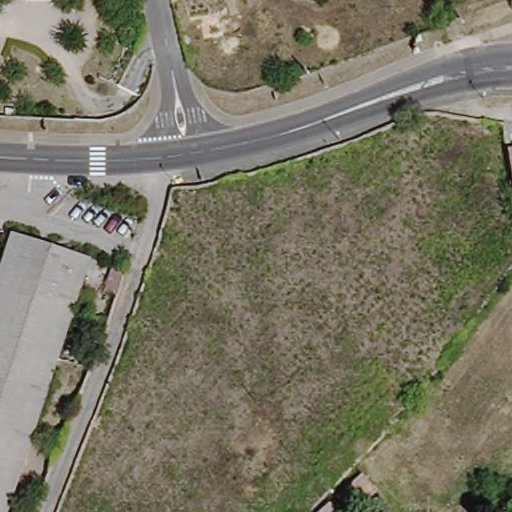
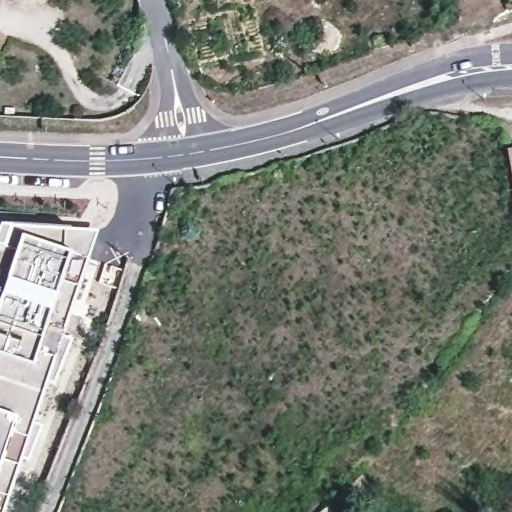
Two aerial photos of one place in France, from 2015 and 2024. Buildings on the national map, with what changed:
unchanged [(3,61),(0,66),(0,59),(3,61)]
unchanged [(512,140),(512,186),(507,141),(510,140),(512,140)]
new [(5,226),(12,227),(98,231),(63,337),(73,340),(55,384),(50,381),(35,423),(42,426),(29,461),(24,458),(5,512),(0,512),(0,240),(5,226)]
demolished [(18,342),(0,337),(0,263),(11,229),(85,253),(42,387),(7,493),(1,512),(0,512),(0,401),(18,342)]
unchanged [(348,512),(310,512),(357,472),(374,486),(348,512)]

